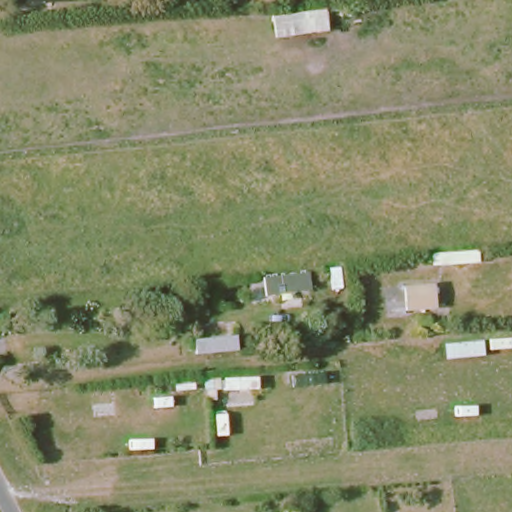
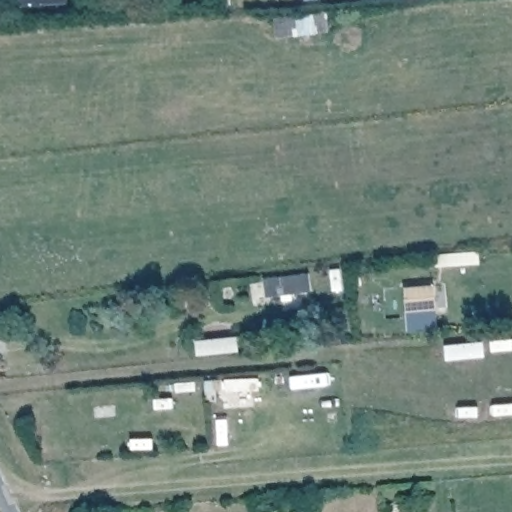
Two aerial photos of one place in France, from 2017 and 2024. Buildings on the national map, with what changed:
unchanged [(15,0),(35,0),(15,1),(15,0)]
unchanged [(434,287),(436,311),(406,313),(404,290),(434,287)]

